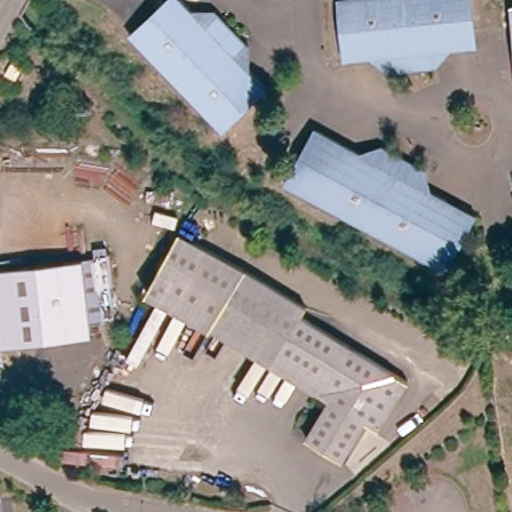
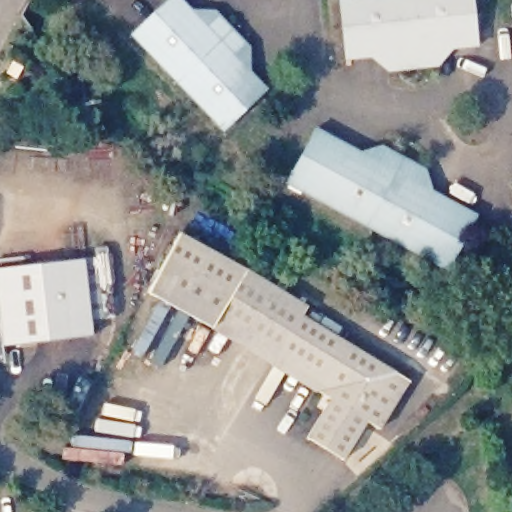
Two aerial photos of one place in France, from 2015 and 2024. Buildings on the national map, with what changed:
unchanged [(130,39),(164,0),(179,0),(190,9),(212,7),(216,10),(246,36),(250,39),(250,62),(269,79),(229,125),(130,39)]
unchanged [(347,59),(342,0),(475,0),(480,48),(453,50),(440,66),(435,67),(395,70),(390,71),(374,57),(347,59)]
unchanged [(22,67),(17,79),(7,73),(12,61),(22,67)]
unchanged [(321,130),(366,155),(387,149),(391,151),(426,170),(430,172),(436,193),(481,218),(452,273),(291,185),(321,130)]
unchanged [(247,272),(219,318),(213,328),(144,289),(180,227),(250,268),(247,272)]
unchanged [(79,260),(87,337),(16,344),(0,347),(0,270),(79,260)]
unchanged [(219,318),(247,272),(290,298),(312,313),(417,385),(384,432),(372,424),(346,461),(311,437),(337,399),(323,390),(279,359),(219,318)]

